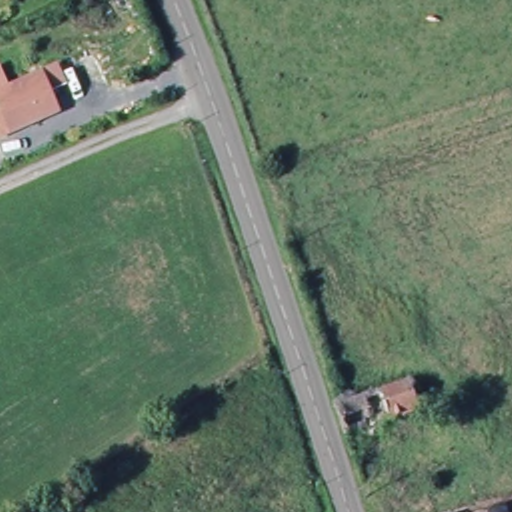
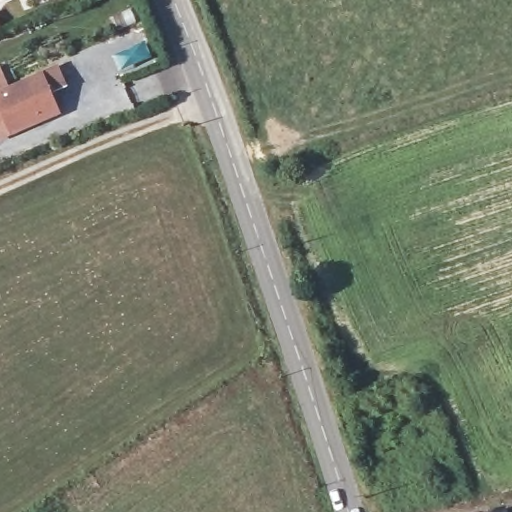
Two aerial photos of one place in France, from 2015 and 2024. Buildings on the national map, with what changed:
unchanged [(6,94),(57,71),(64,89),(51,94),(60,115),(0,141),(0,117),(3,116),(0,109),(0,79),(6,94)]
unchanged [(416,388),(423,412),(352,434),(345,409),(416,388)]
unchanged [(502,508),(504,512),(490,512),(502,508)]

